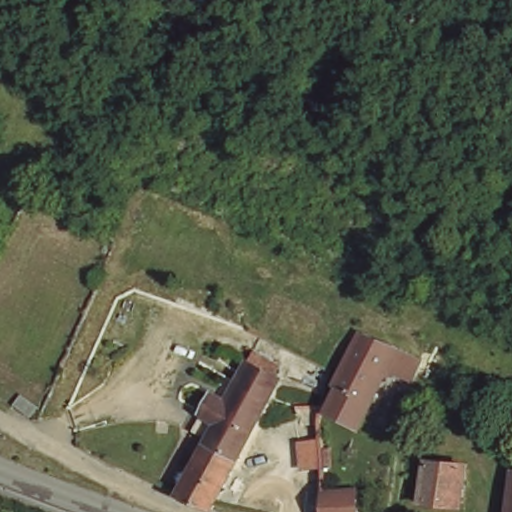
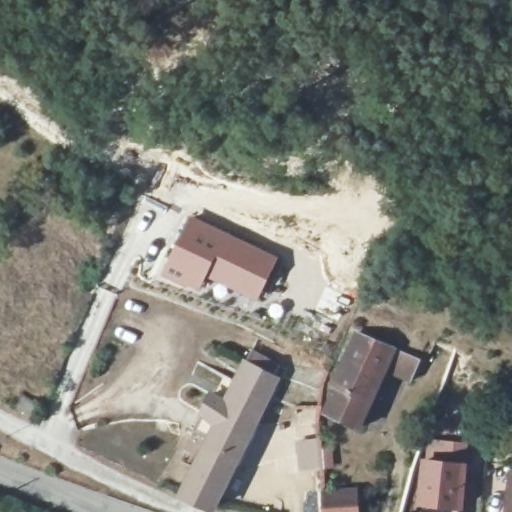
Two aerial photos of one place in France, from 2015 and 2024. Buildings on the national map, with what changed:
new [(276,260),(256,297),(173,256),(191,219),(276,260)]
unchanged [(424,363),(413,386),(387,372),(360,426),(331,410),(340,391),(335,387),(364,333),(424,363)]
unchanged [(199,503),(183,495),(216,422),(201,410),(224,368),(240,376),(247,363),(281,380),(216,510),(199,503)]
unchanged [(470,466),(461,505),(420,497),(429,457),(470,466)]
unchanged [(512,478),(512,512),(507,512),(512,478)]
unchanged [(326,487),(358,486),(357,512),(328,512),(326,487)]

